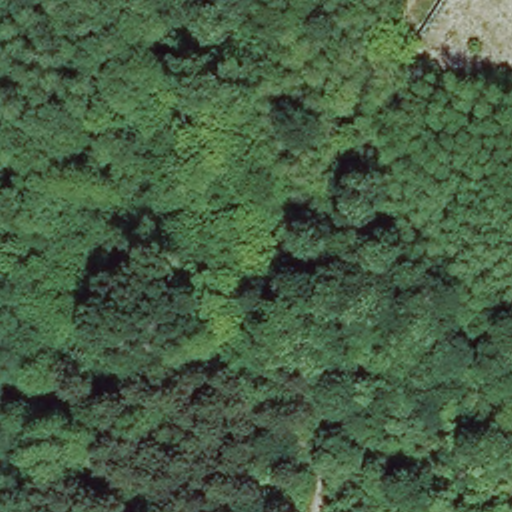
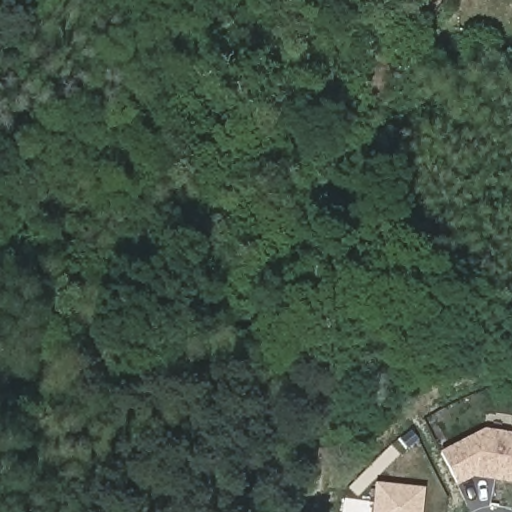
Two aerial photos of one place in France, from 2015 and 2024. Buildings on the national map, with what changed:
new [(456,482),(440,452),(483,430),(512,435),(512,479),(472,473),(456,482)]
new [(375,512),(377,483),(424,488),(422,512),(375,512)]

